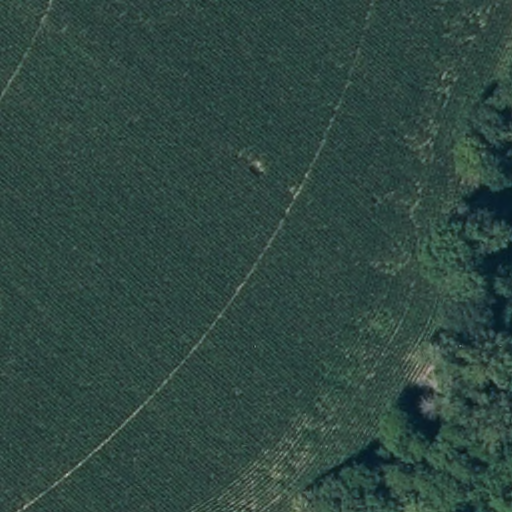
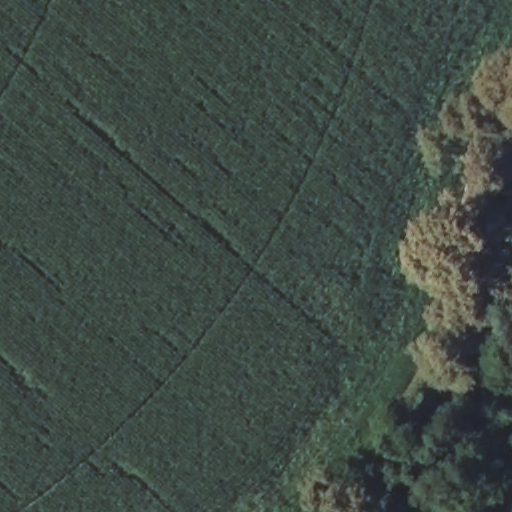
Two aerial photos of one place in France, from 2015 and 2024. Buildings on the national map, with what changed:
[]

